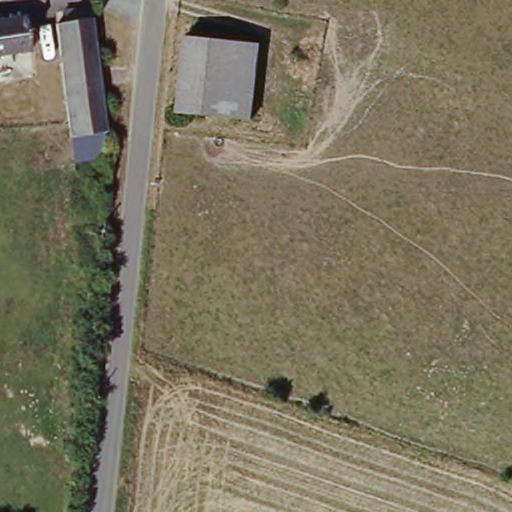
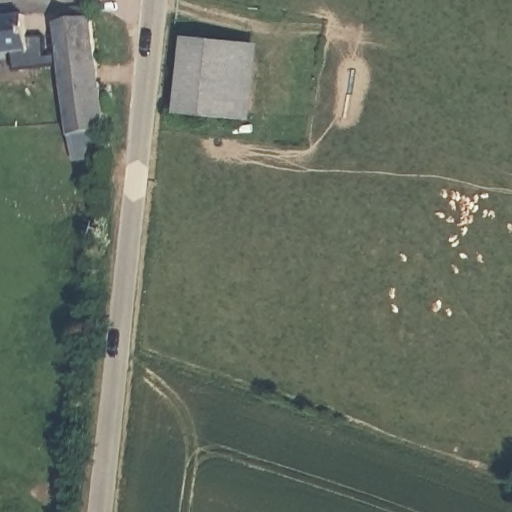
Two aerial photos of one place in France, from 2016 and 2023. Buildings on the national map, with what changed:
unchanged [(53,24),(66,21),(61,7),(88,6),(104,97),(115,162),(76,167),(56,51),(53,24)]
unchanged [(34,54),(0,59),(0,20),(29,17),(34,54)]
unchanged [(185,40),(262,47),(252,123),(178,118),(185,40)]

